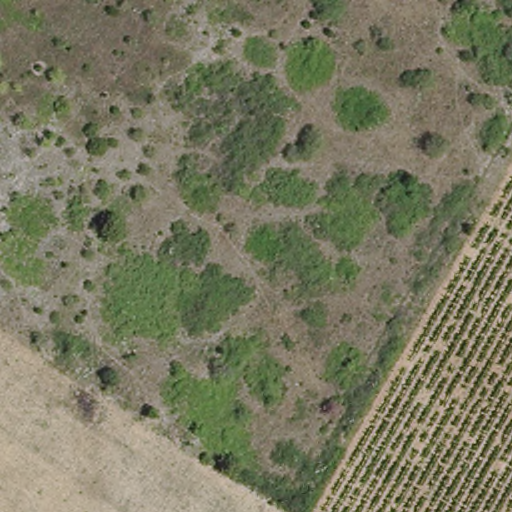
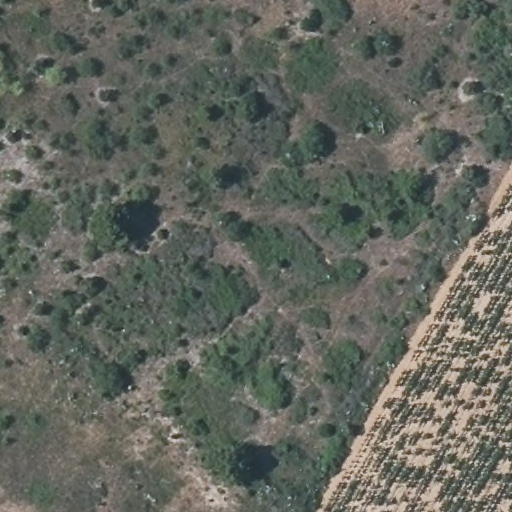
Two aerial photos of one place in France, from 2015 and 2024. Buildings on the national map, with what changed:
[]

